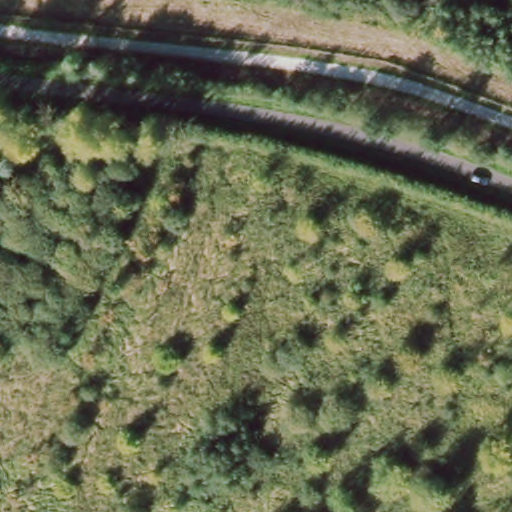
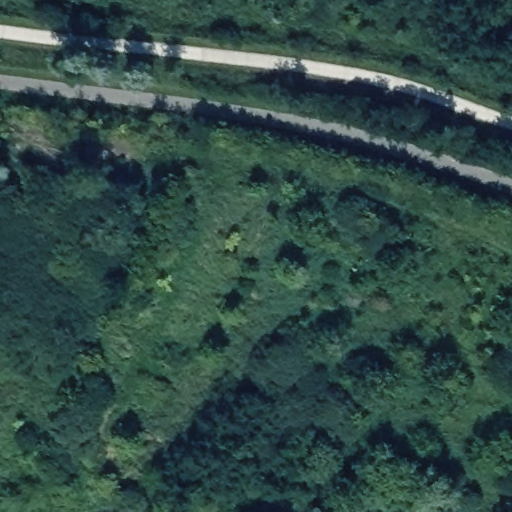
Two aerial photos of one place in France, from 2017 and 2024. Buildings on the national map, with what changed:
[]

